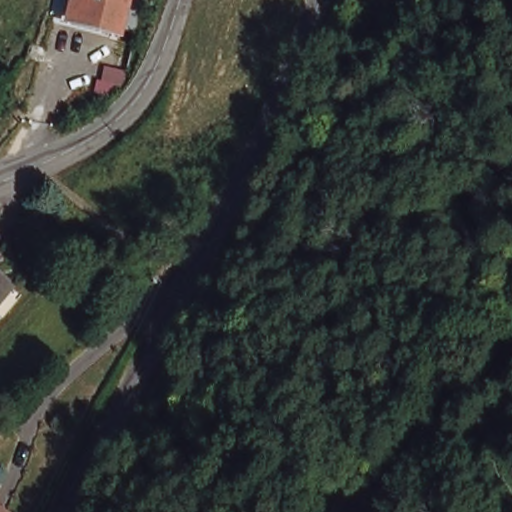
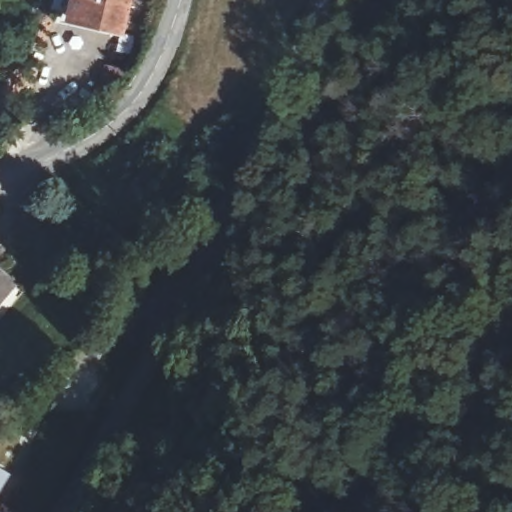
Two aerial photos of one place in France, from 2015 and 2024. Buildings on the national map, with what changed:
unchanged [(124,0),(120,27),(70,19),(72,0),(124,0)]
unchanged [(0,305),(0,273),(16,284),(0,305)]
unchanged [(7,512),(0,512),(0,508),(7,512)]

